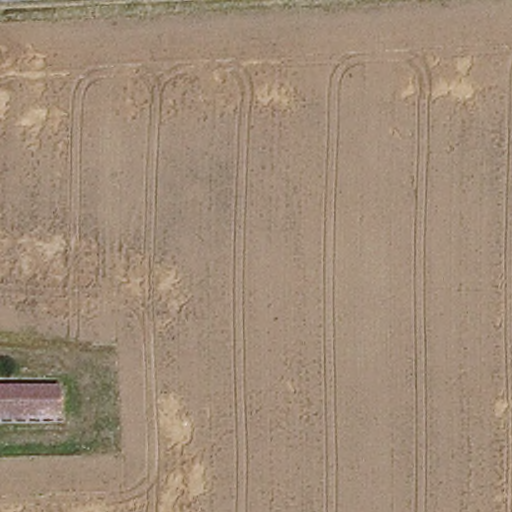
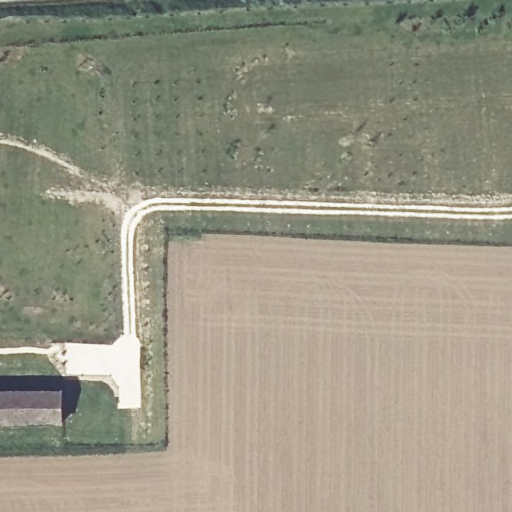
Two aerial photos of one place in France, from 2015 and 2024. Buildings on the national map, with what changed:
unchanged [(66,390),(66,424),(0,425),(0,390),(66,390)]

